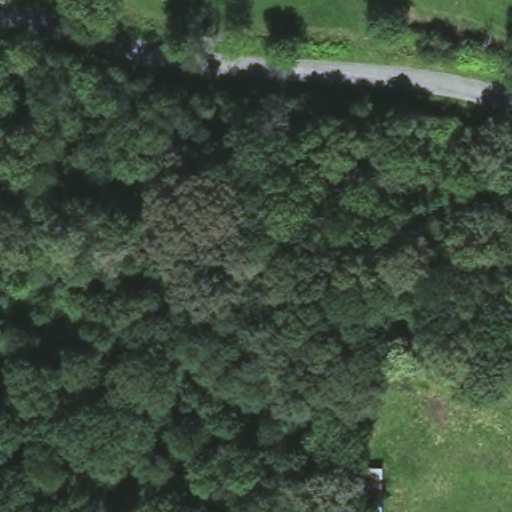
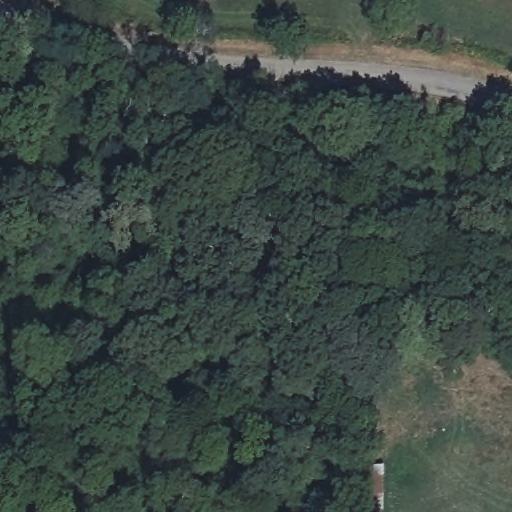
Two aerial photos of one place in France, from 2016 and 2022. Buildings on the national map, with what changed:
unchanged [(385,463),(383,512),(358,512),(359,464),(385,463)]

